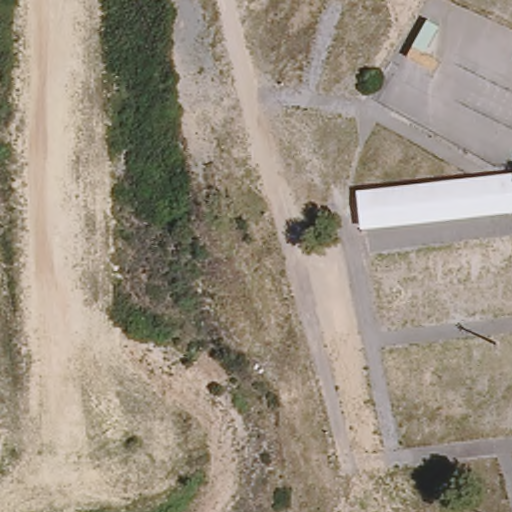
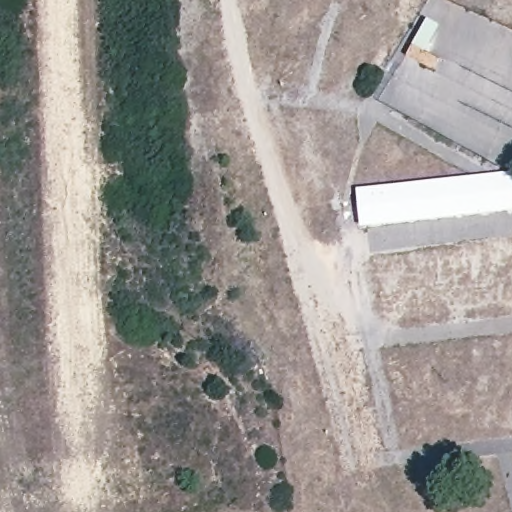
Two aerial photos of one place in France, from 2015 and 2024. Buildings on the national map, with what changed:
unchanged [(358,189),(512,170),(512,211),(363,228),(358,189)]

